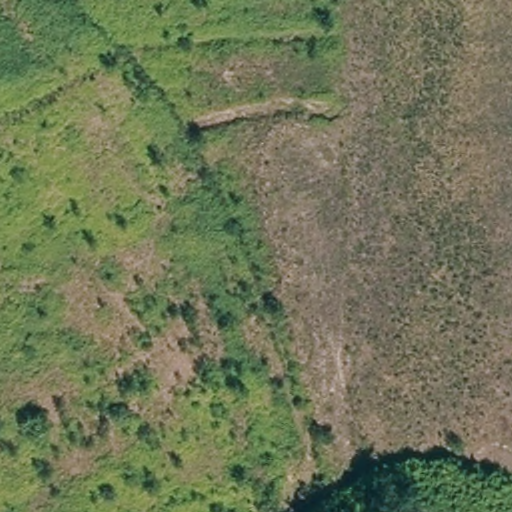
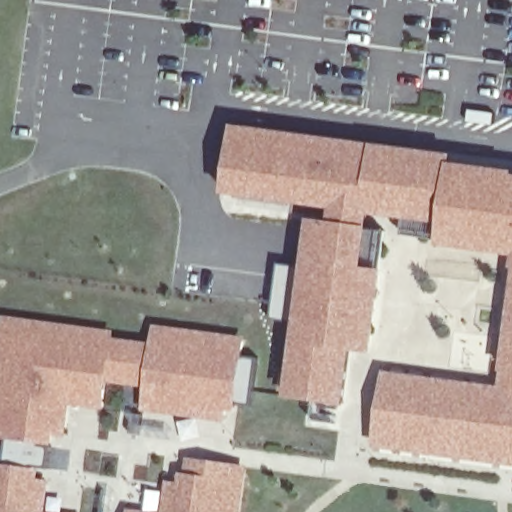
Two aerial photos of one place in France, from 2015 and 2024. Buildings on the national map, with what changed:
new [(311,219),(331,221),(332,209),(224,194),(234,124),(454,155),(453,164),(512,171),(512,255),(441,246),(444,224),(374,217),(372,228),(367,267),(388,270),(375,356),(354,354),(347,407),(286,398),(297,318),(274,317),(281,265),(304,267),(311,219)]
new [(383,371),(500,388),(503,370),(512,297),(512,465),(374,448),(383,371)]
new [(115,337),(150,343),(153,325),(262,341),(259,359),(252,404),(238,402),(236,412),(227,411),(225,421),(142,411),(145,387),(107,382),(103,410),(68,405),(64,438),(51,436),(47,469),(40,468),(39,480),(48,482),(46,512),(0,512),(0,464),(4,465),(8,438),(0,437),(0,323),(1,315),(115,331),(115,337)]
new [(242,470),(237,512),(161,512),(165,479),(173,480),(185,481),(188,456),(233,462),(232,469),(242,470)]
new [(161,512),(126,512),(126,508),(161,512)]

